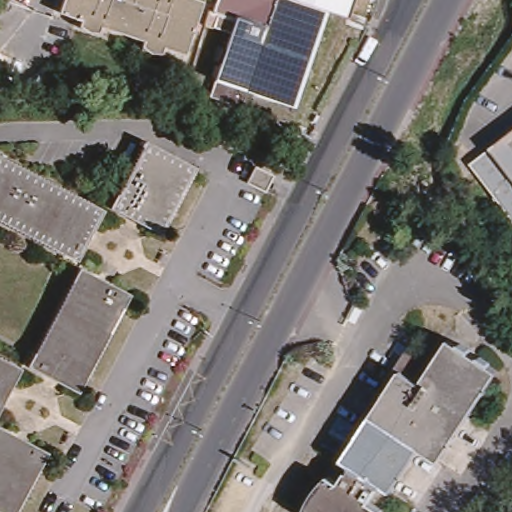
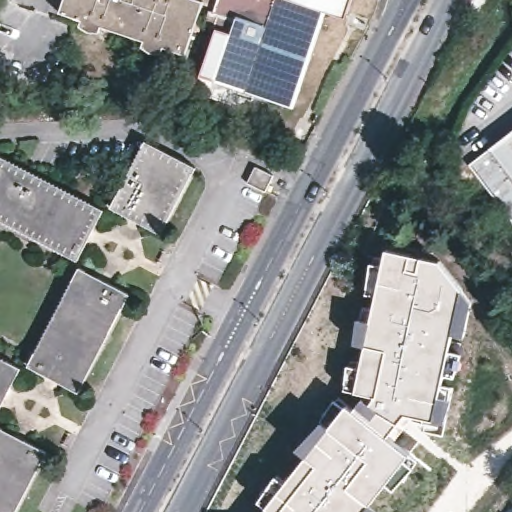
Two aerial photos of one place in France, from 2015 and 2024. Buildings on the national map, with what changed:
unchanged [(140,36),(100,24),(98,28),(78,22),(80,17),(58,10),(60,0),(199,0),(193,20),(190,19),(188,24),(192,25),(184,50),(161,43),(160,48),(138,41),(140,36)]
unchanged [(297,107),(256,94),(251,110),(214,97),(220,81),(218,80),(233,34),(216,28),(221,14),(217,13),(221,0),(299,0),(329,10),(297,107)]
unchanged [(329,10),(299,0),(349,0),(345,14),(329,10)]
unchanged [(512,128),(512,211),(472,160),(512,128)]
unchanged [(203,164),(168,230),(119,204),(154,139),(203,164)]
unchanged [(110,206),(84,257),(0,212),(0,150),(1,149),(110,206)]
unchanged [(271,176),(263,191),(246,184),(254,169),(271,176)]
new [(441,261),(471,302),(464,335),(454,331),(440,396),(450,398),(444,420),(408,413),(389,436),(408,451),(360,512),(276,512),(260,499),(278,475),(285,480),(307,455),(296,446),(308,431),(324,421),(329,425),(348,403),(354,408),(364,397),(371,402),(376,395),(355,390),(387,249),(441,261)]
unchanged [(137,290),(85,388),(36,361),(87,265),(137,290)]
demolished [(440,461),(420,448),(392,492),(382,486),(371,504),(383,512),(308,512),(329,478),(340,485),(352,466),(345,461),(415,350),(436,364),(450,341),(497,373),(440,461)]
unchanged [(28,364),(2,414),(0,413),(0,349),(28,364)]
unchanged [(54,448),(20,512),(17,512),(0,504),(0,431),(5,422),(54,448)]

